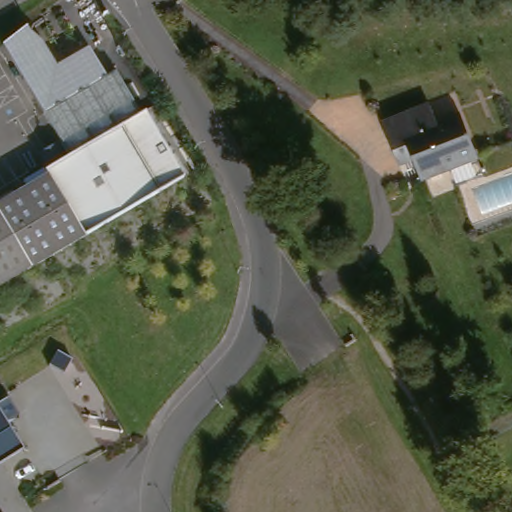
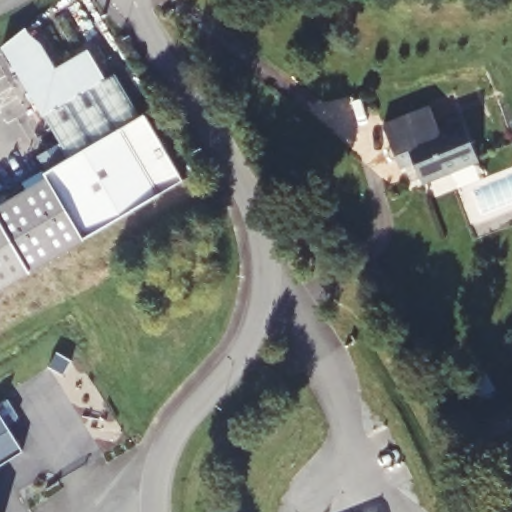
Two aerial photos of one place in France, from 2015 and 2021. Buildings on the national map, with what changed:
unchanged [(100,82),(47,112),(43,115),(3,47),(25,29),(41,43),(55,67),(88,49),(104,80),(100,82)]
unchanged [(0,283),(0,205),(51,177),(46,167),(49,166),(43,153),(64,140),(47,112),(120,72),(144,115),(125,125),(163,192),(0,283)]
unchanged [(405,160),(401,162),(384,126),(429,107),(440,130),(462,121),(479,159),(426,182),(423,176),(413,180),(405,160)]
unchanged [(144,115),(149,112),(186,180),(163,192),(125,125),(144,115)]
unchanged [(481,367),(494,395),(478,402),(466,374),(481,367)]
unchanged [(24,451),(0,468),(0,412),(24,451)]

